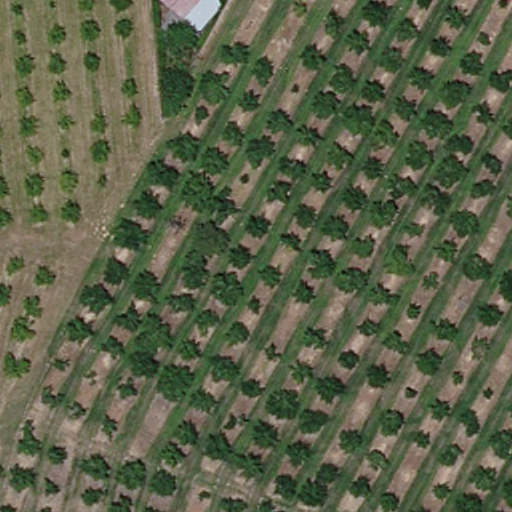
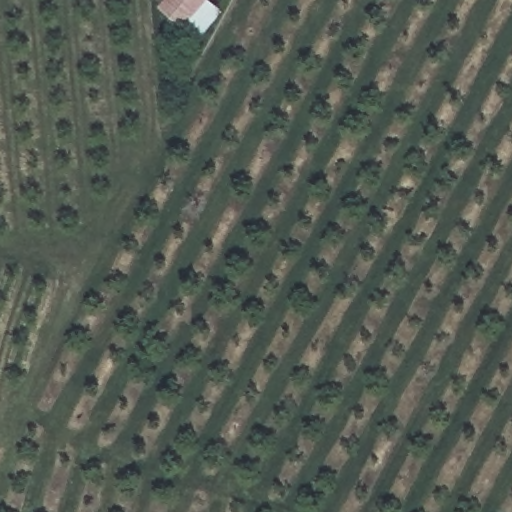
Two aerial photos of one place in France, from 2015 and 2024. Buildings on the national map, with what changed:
unchanged [(181,29),(156,7),(162,0),(202,0),(205,2),(181,29)]

